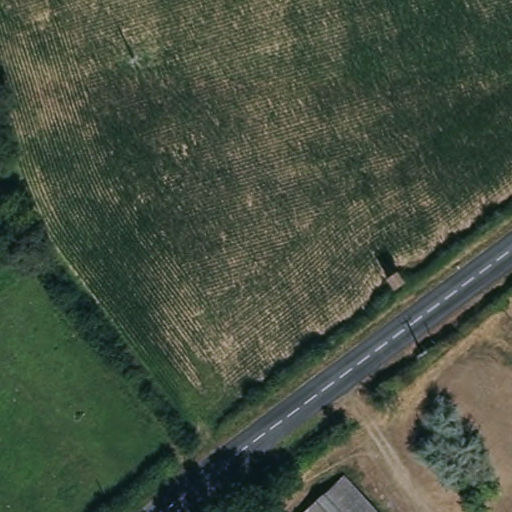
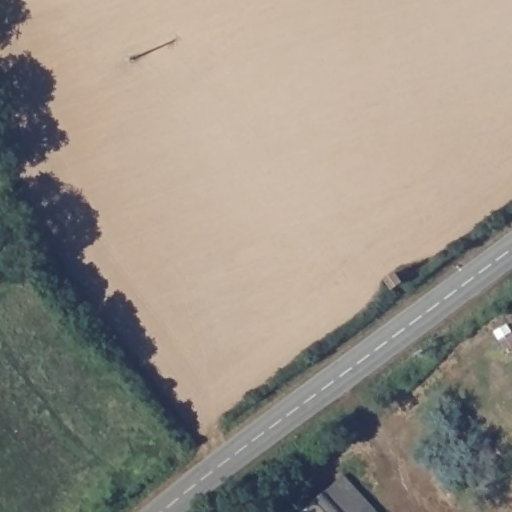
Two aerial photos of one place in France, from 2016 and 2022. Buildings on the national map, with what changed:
unchanged [(375,512),(302,512),(339,474),(375,512)]

